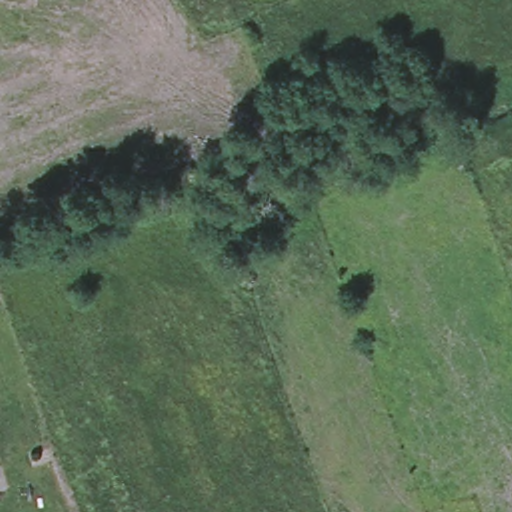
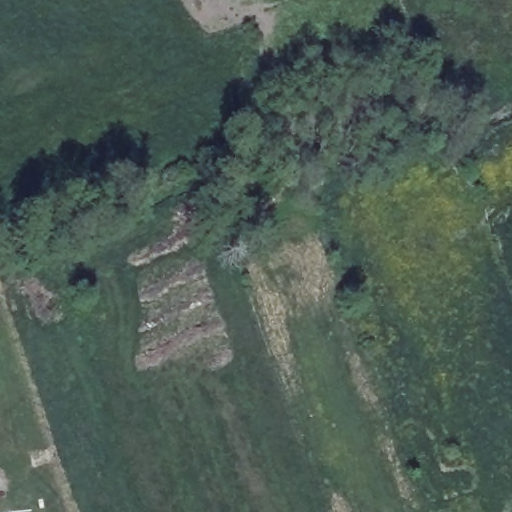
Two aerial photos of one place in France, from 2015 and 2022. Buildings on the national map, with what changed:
[]

